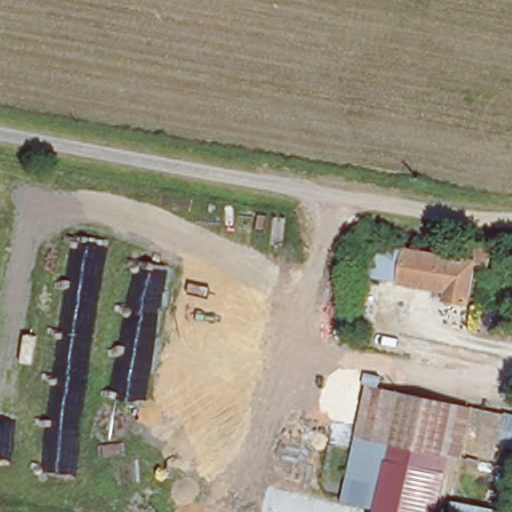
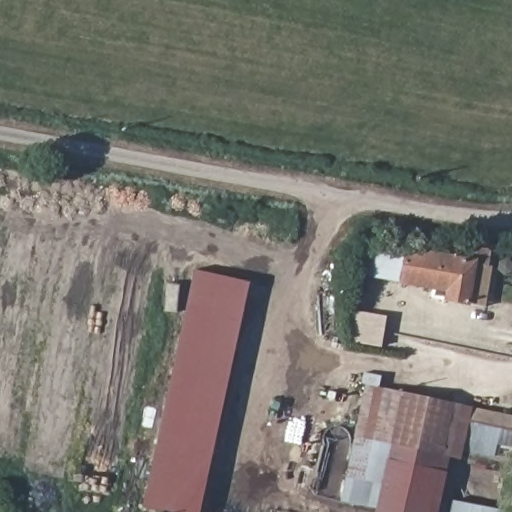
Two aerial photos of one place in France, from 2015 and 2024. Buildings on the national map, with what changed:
unchanged [(451,259),(454,244),(492,250),(490,266),(476,264),(468,303),(447,300),(449,291),(372,278),(379,245),(451,259)]
new [(194,270),(249,282),(199,512),(161,512),(142,508),(194,270)]
unchanged [(393,442),(357,435),(370,374),(382,376),(379,388),(405,393),(393,442)]
unchanged [(473,407),(465,446),(462,456),(393,442),(405,393),(473,407)]
unchanged [(501,440),(497,453),(465,446),(473,407),(512,414),(512,442),(501,440)]
unchanged [(447,473),(440,512),(374,512),(375,509),(342,503),(357,435),(393,442),(451,454),(447,473)]
unchanged [(508,512),(451,512),(453,501),(508,512)]

